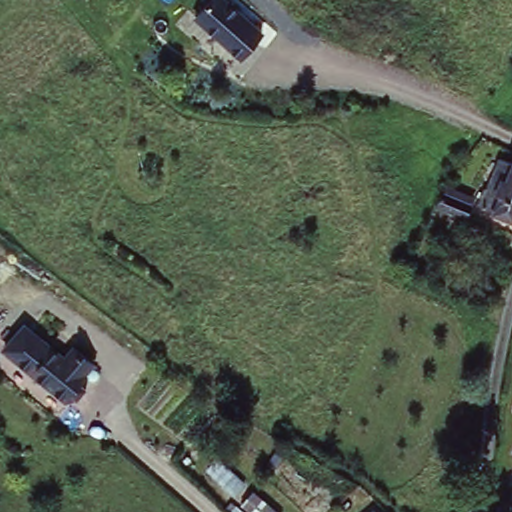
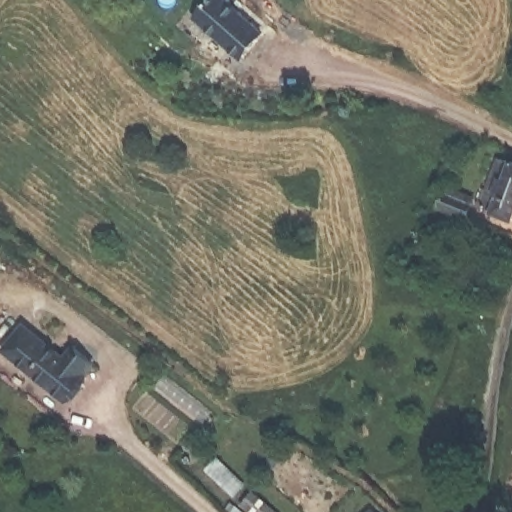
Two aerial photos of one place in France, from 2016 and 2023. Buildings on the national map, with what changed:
unchanged [(190,16),(203,0),(235,0),(255,15),(248,22),(258,30),(237,55),(227,46),(190,16)]
unchanged [(472,210),(467,222),(436,212),(447,184),(482,197),(498,152),(512,157),(512,225),(472,210)]
unchanged [(65,407),(12,357),(33,337),(61,363),(78,346),(99,366),(90,377),(87,382),(65,407)]
unchanged [(223,456),(245,486),(231,492),(212,463),(223,456)]
unchanged [(256,490),(284,512),(243,512),(239,508),(256,490)]

